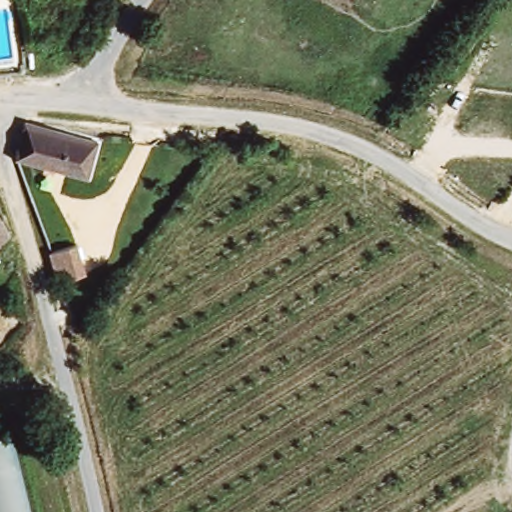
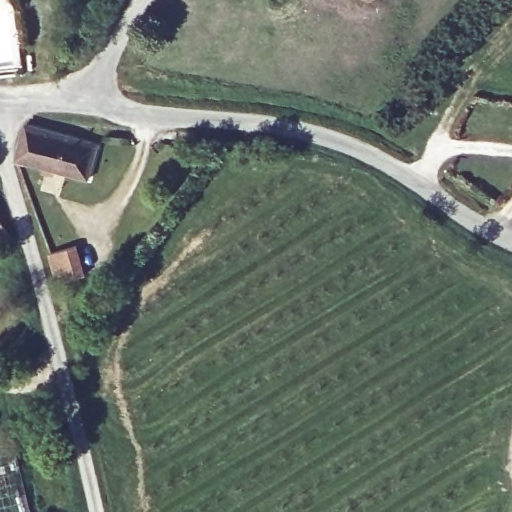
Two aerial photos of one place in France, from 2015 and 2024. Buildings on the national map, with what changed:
unchanged [(15,159),(24,128),(99,152),(90,182),(15,159)]
unchanged [(0,250),(0,220),(15,235),(0,250)]
unchanged [(57,284),(49,255),(78,245),(85,270),(85,273),(57,284)]
unchanged [(0,436),(11,434),(30,512),(0,512),(0,436)]

